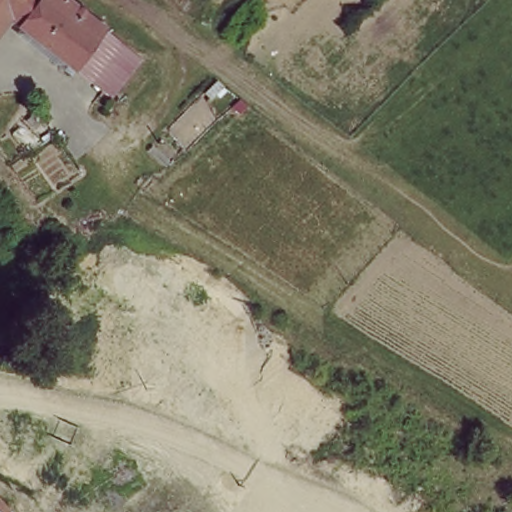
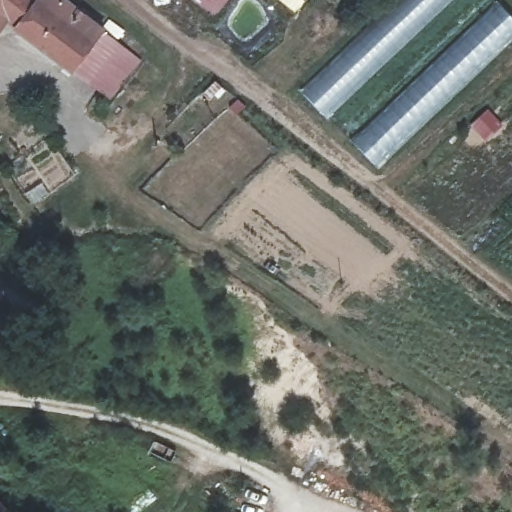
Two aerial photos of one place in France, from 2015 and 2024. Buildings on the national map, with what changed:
unchanged [(63,70),(10,27),(0,37),(0,0),(65,0),(93,25),(101,32),(70,70),(63,70)]
new [(400,0),(450,0),(327,117),(302,91),(400,0)]
new [(351,139),(496,2),(512,17),(512,35),(378,167),(351,139)]
unchanged [(101,32),(137,65),(105,100),(70,70),(101,32)]
unchanged [(10,512),(0,512),(0,499),(10,512)]

